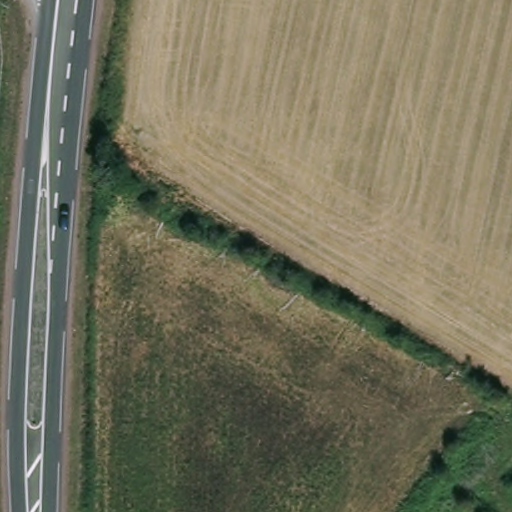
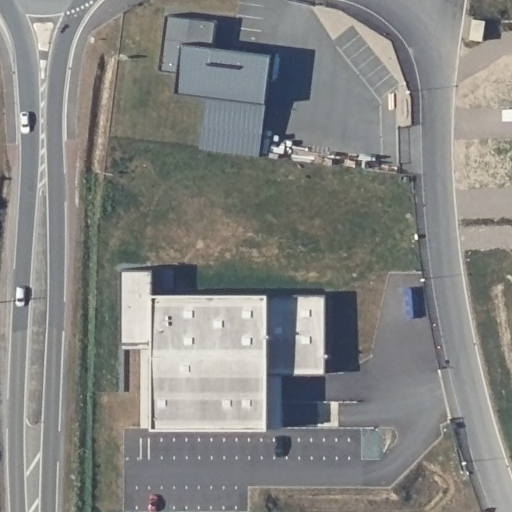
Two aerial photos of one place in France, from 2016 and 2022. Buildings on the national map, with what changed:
new [(144,6),(225,17),(222,42),(281,50),(271,129),(210,121),(213,93),(153,86),(156,65),(137,63),(144,6)]
new [(155,429),(154,341),(123,342),(124,270),(155,270),(156,294),(269,294),(326,296),(328,373),(269,372),(269,429),(155,429)]

